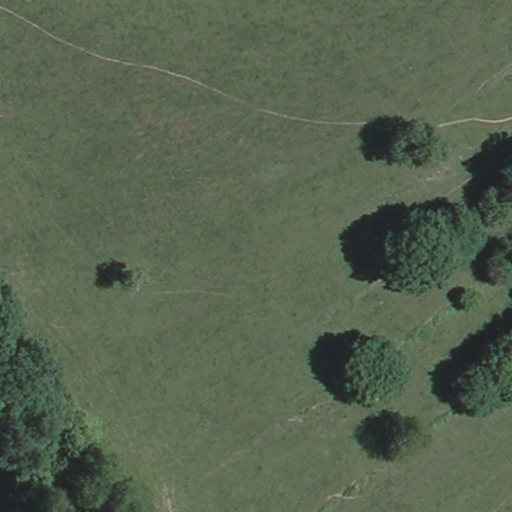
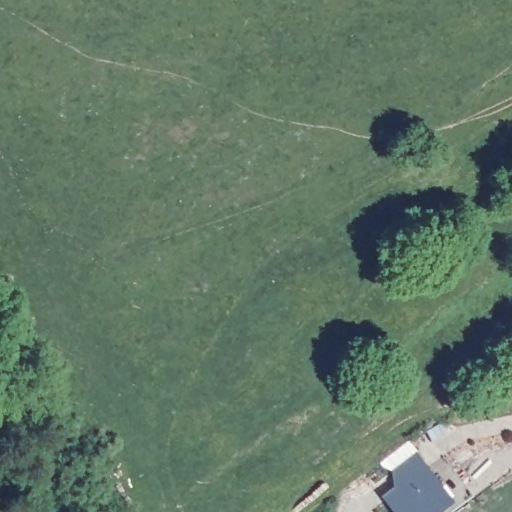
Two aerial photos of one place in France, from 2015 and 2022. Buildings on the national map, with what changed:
new [(473,497),(454,512),(392,512),(382,497),(395,489),(393,471),(383,459),(407,442),(428,467),(443,456),(473,497)]

